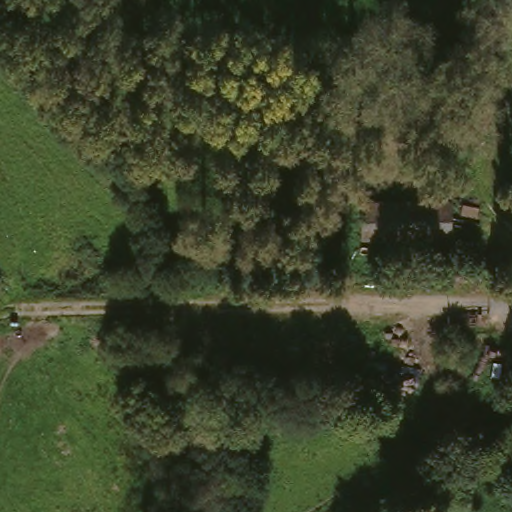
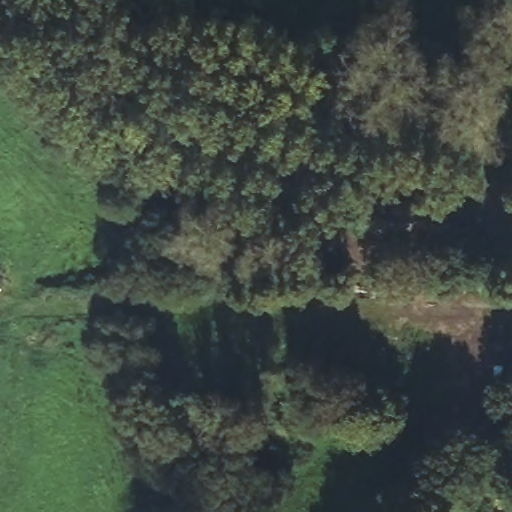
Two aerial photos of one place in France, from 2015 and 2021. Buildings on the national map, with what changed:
unchanged [(455,237),(444,237),(368,236),(369,202),(444,204),(455,204),(455,237)]
unchanged [(495,259),(440,257),(391,255),(391,246),(440,247),(495,249),(495,259)]

